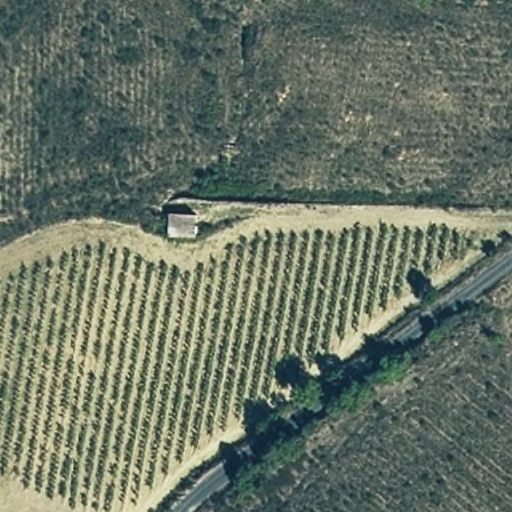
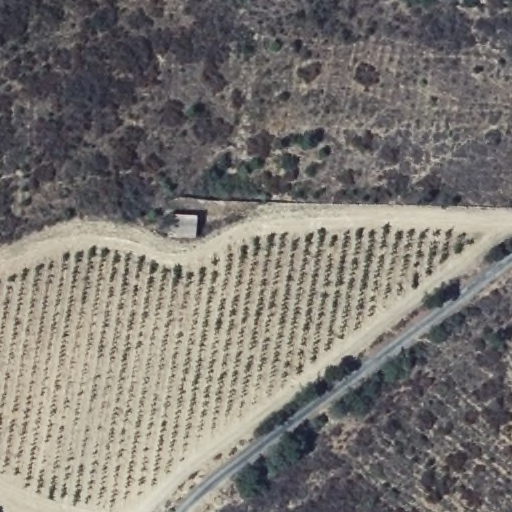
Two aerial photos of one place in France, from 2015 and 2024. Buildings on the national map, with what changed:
unchanged [(192,216),(191,232),(169,231),(171,217),(192,216)]

